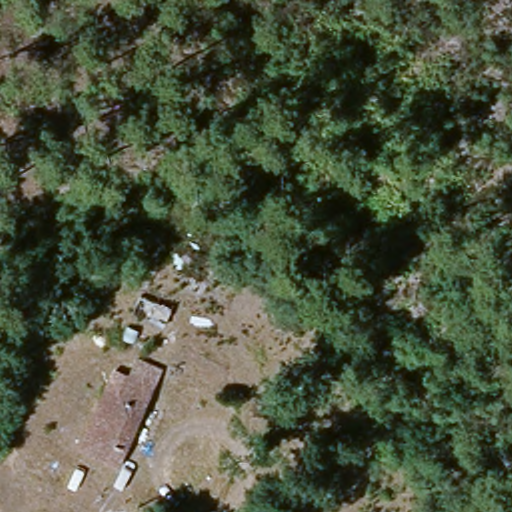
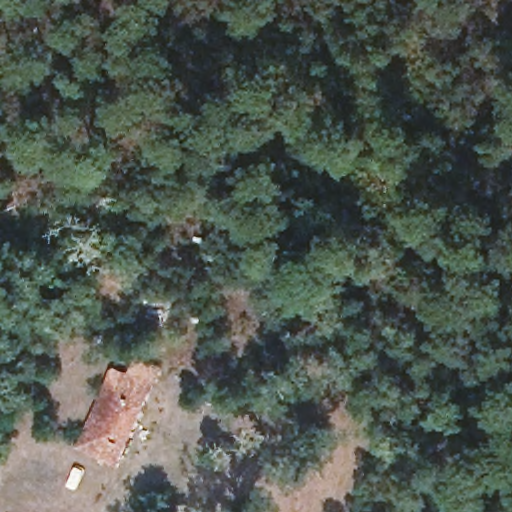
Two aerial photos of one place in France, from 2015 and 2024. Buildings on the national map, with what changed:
unchanged [(108,398),(118,375),(139,386),(146,373),(161,381),(147,414),(108,398)]
unchanged [(132,455),(122,455),(92,437),(108,398),(147,414),(132,455)]

